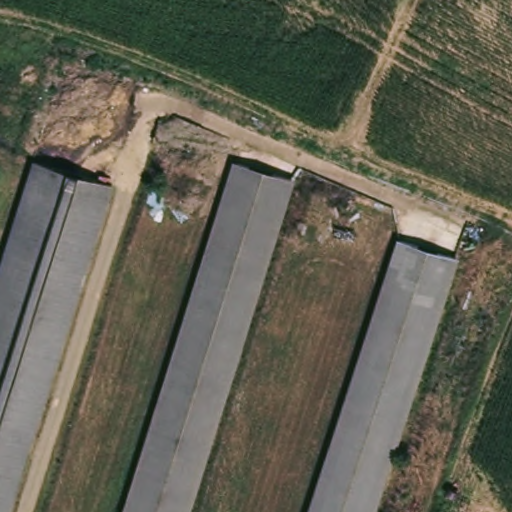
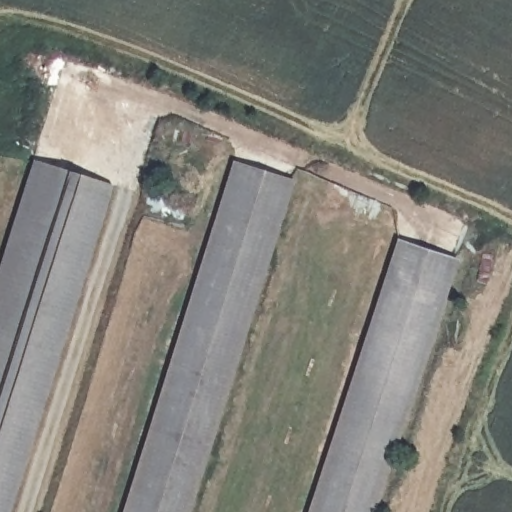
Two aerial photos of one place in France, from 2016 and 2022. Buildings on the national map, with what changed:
unchanged [(103,179),(8,512),(0,512),(0,256),(29,157),(103,179)]
unchanged [(294,180),(256,302),(220,416),(190,512),(135,512),(152,459),(182,364),(223,237),(244,164),(294,180)]
unchanged [(456,257),(416,380),(387,468),(373,512),(313,512),(339,432),(401,240),(456,257)]

